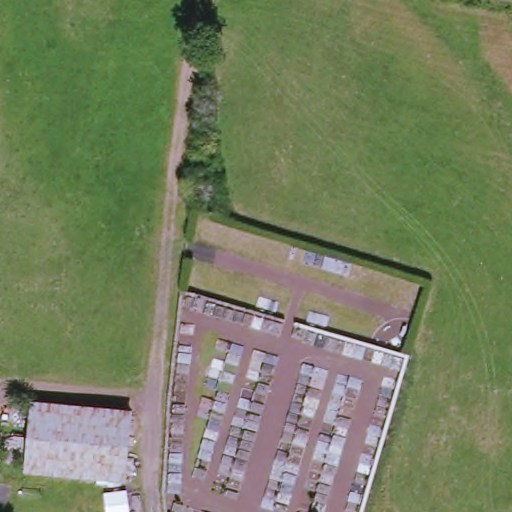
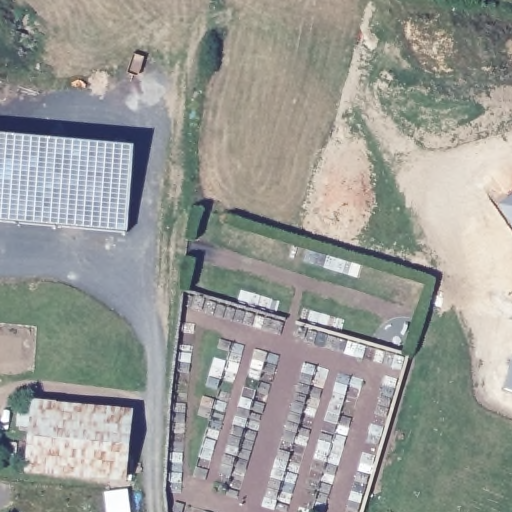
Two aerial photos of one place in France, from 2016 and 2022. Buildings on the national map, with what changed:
new [(135,147),(127,231),(0,220),(0,135),(135,147)]
unchanged [(124,488),(27,480),(32,409),(129,416),(124,488)]

